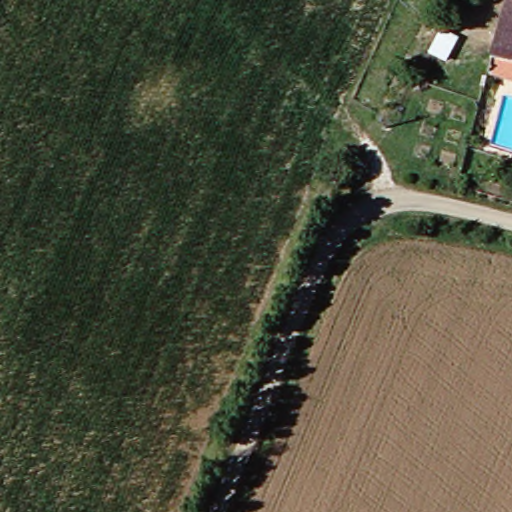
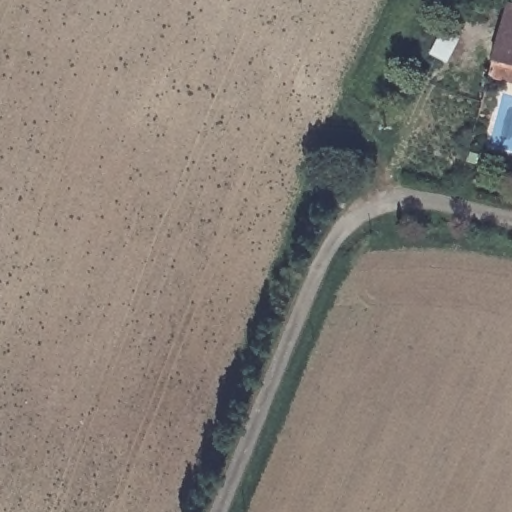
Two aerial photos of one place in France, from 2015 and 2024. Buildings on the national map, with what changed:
unchanged [(486,58),(507,2),(512,4),(512,66),(486,58)]
unchanged [(482,68),(486,58),(512,66),(512,80),(482,68)]

